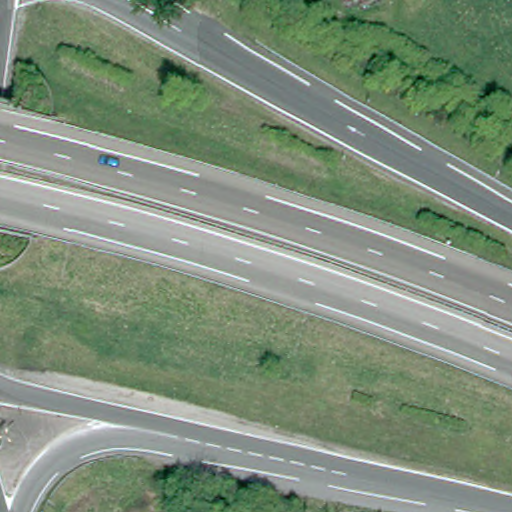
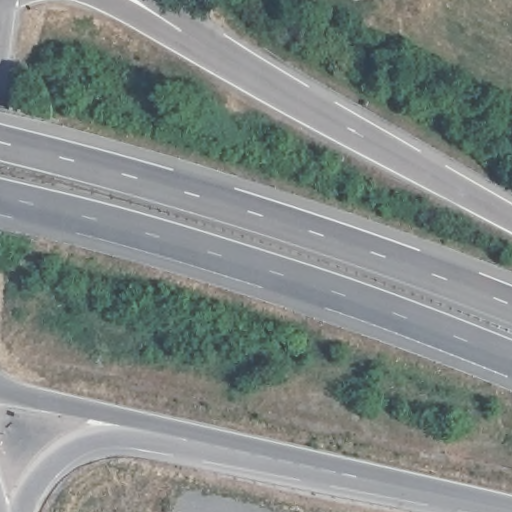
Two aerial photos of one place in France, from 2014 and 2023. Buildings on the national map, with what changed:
unchanged [(357,6),(355,0),(370,0),(357,6)]

